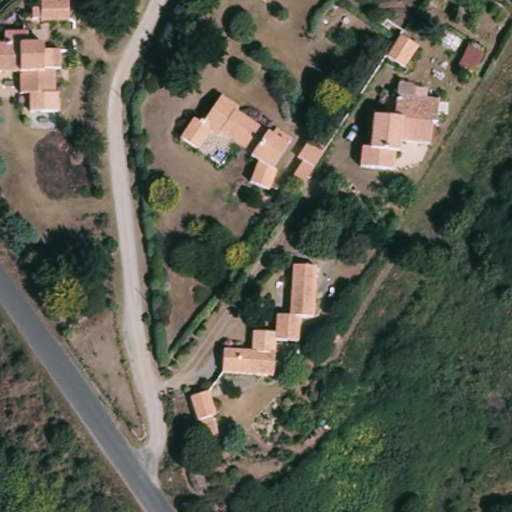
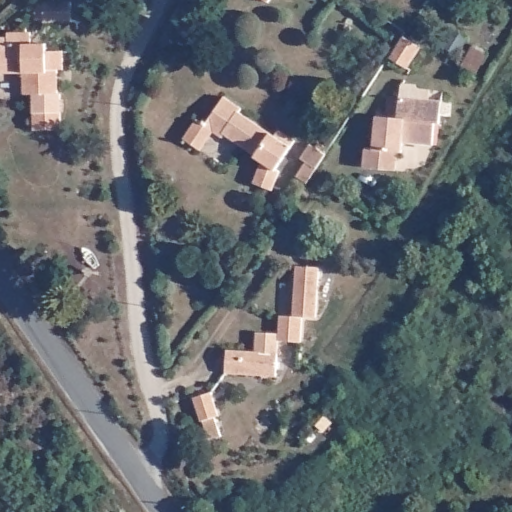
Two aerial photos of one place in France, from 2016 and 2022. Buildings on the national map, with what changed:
unchanged [(41,3),(41,0),(68,0),(68,16),(42,17),(41,15),(33,15),(33,4),(41,3)]
unchanged [(260,0),(266,0),(264,2),(260,0)]
unchanged [(5,25),(29,24),(29,35),(44,34),(44,41),(60,41),(61,60),(56,61),(58,85),(60,85),(61,104),(34,105),(33,86),(24,87),(22,62),(0,63),(0,36),(6,35),(5,25)]
unchanged [(402,36),(403,35),(420,46),(406,68),(389,56),(402,36)]
unchanged [(484,56),(473,75),(460,66),(472,49),(484,56)]
unchanged [(195,115),(206,120),(224,94),(243,104),(241,110),(274,129),(278,125),(299,139),(279,166),(274,189),(252,183),(260,159),(218,130),(204,149),(180,137),(195,115)]
unchanged [(402,149),(398,149),(397,167),(364,165),(366,145),(374,145),(377,113),(400,115),(402,95),(444,97),(442,119),(437,118),(434,139),(403,137),(402,149)]
unchanged [(305,185),(295,179),(305,164),(300,161),(309,146),(314,150),(320,140),(330,147),(324,156),(319,165),(305,185)]
unchanged [(307,262),(310,312),(297,313),(298,336),(276,338),(278,372),(229,376),(227,354),(254,352),(254,335),(275,333),(275,315),(286,313),(284,268),(284,264),(287,263),(307,262)]
unchanged [(205,420),(203,420),(195,398),(211,391),(220,415),(217,415),(224,433),(212,438),(205,420)]

